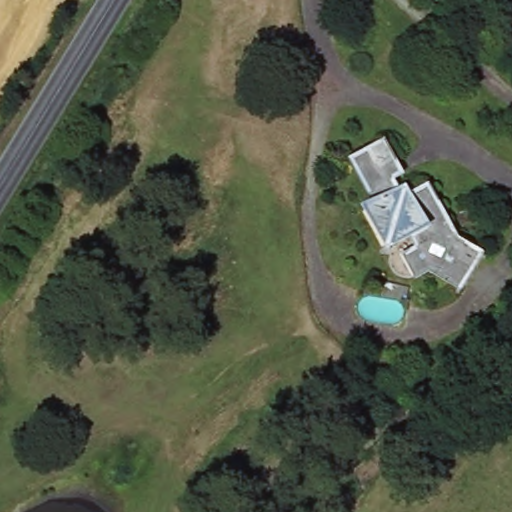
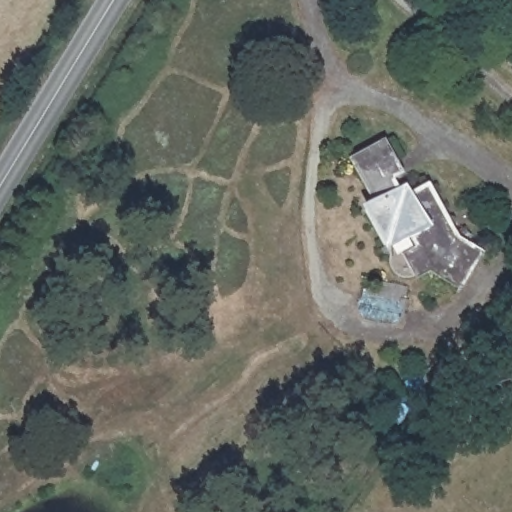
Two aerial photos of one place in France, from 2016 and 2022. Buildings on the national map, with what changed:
unchanged [(379,147),(397,181),(387,187),(392,197),(401,194),(408,201),(426,191),(455,244),(480,257),(463,288),(431,272),(422,270),(415,276),(405,257),(415,249),(407,237),(384,249),(365,213),(373,207),(349,164),(379,147)]

